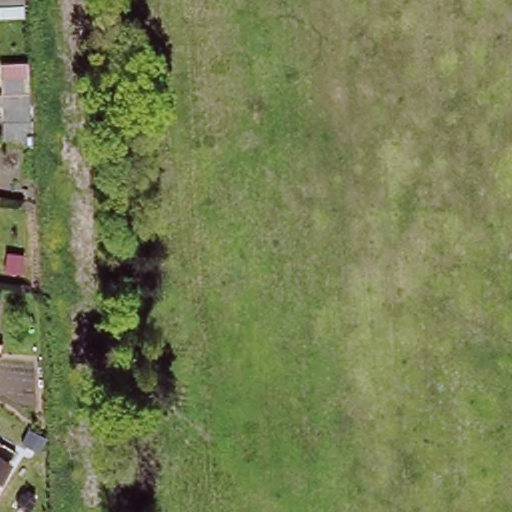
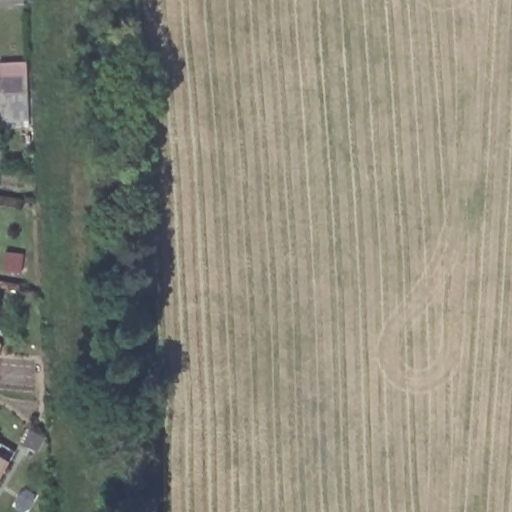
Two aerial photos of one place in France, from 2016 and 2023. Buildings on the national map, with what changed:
unchanged [(23,0),(24,1),(24,14),(0,14),(0,0),(23,0)]
unchanged [(3,131),(1,91),(0,70),(0,59),(26,58),(27,90),(29,130),(3,131)]
unchanged [(2,300),(0,313),(0,300),(2,300)]
unchanged [(2,440),(0,443),(0,439),(2,440)]
unchanged [(15,463),(0,487),(0,454),(15,463)]

